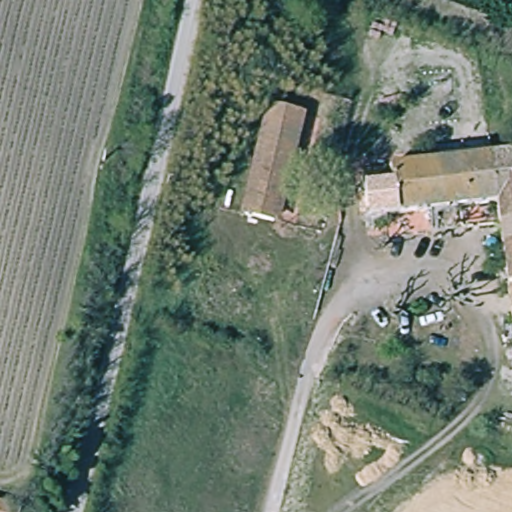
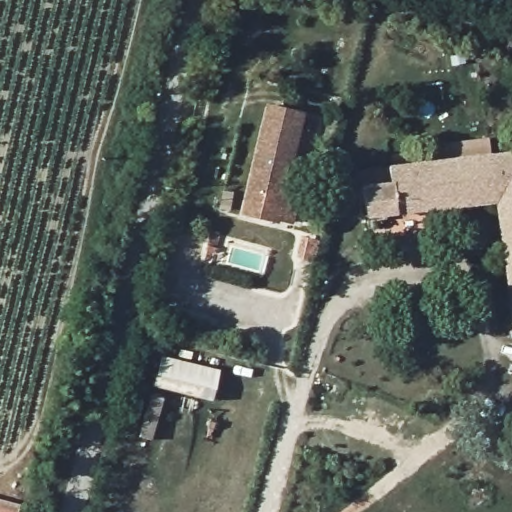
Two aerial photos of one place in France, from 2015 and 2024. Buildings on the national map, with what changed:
unchanged [(306,117),(279,224),(248,216),(274,108),(306,117)]
unchanged [(512,150),(512,276),(510,262),(509,248),(508,241),(507,234),(504,206),(503,197),(500,178),(499,164),(497,151),(512,150)]
unchanged [(399,208),(397,195),(394,162),(497,151),(499,164),(500,178),(503,197),(399,208)]
unchanged [(397,195),(399,208),(371,210),(366,165),(394,162),(397,195)]
new [(161,356),(219,370),(213,401),(153,386),(161,356)]
unchanged [(21,503),(19,512),(0,512),(0,497),(16,502),(21,503)]

